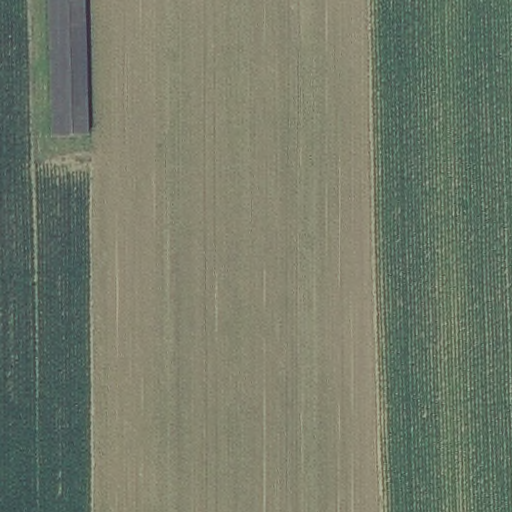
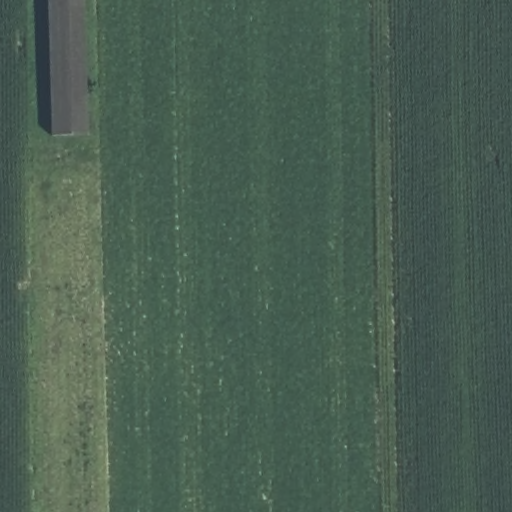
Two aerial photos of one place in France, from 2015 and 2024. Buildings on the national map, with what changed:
unchanged [(89,134),(54,134),(50,0),(86,0),(89,134)]

